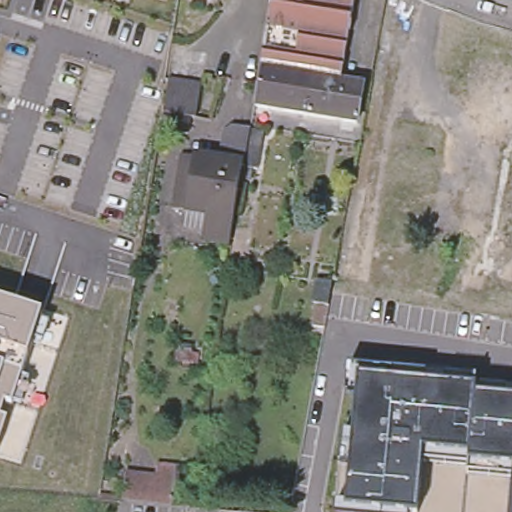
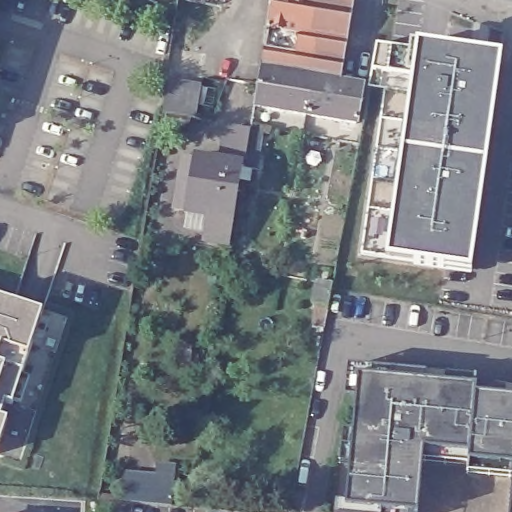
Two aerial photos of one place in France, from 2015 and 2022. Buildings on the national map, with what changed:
unchanged [(313,82),(259,72),(264,44),(272,0),(355,0),(340,85),(340,87),(313,82)]
new [(361,256),(386,90),(369,88),(371,70),(376,45),(416,51),(416,45),(501,58),(469,272),(387,261),(361,256)]
unchanged [(259,72),(313,82),(305,117),(253,109),(259,72)]
unchanged [(196,86),(192,115),(160,110),(164,81),(196,86)]
unchanged [(313,82),(340,87),(340,85),(363,89),(356,125),(305,117),(313,82)]
unchanged [(154,133),(158,115),(187,119),(184,137),(154,133)]
unchanged [(207,218),(185,214),(173,212),(183,159),(194,162),(194,160),(218,164),(223,137),(233,129),(249,133),(243,169),(241,168),(231,222),(226,248),(203,244),(207,218)]
unchanged [(39,317),(26,355),(0,439),(0,304),(39,317)]
unchanged [(476,375),(475,386),(512,389),(512,512),(507,512),(507,478),(468,475),(471,463),(422,461),(417,512),(336,512),(346,366),(476,375)]
unchanged [(123,499),(126,471),(142,472),(173,475),(170,503),(139,501),(123,499)]

